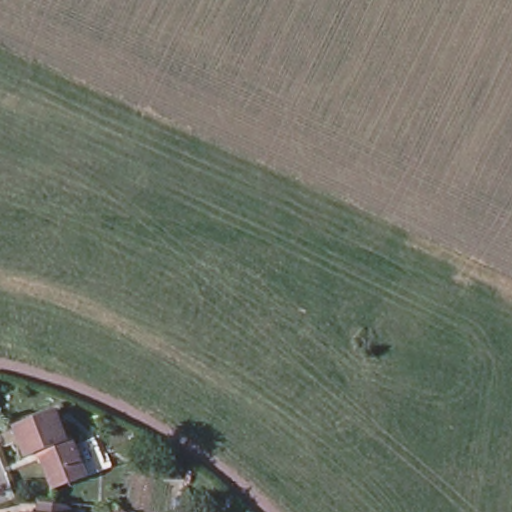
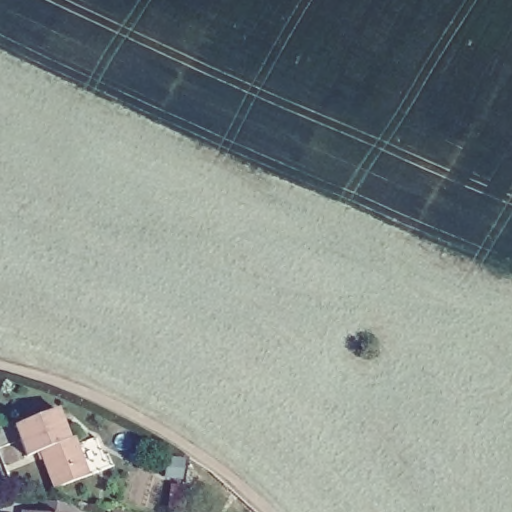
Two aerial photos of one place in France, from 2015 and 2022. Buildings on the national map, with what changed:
unchanged [(70,446),(76,444),(90,482),(55,495),(42,458),(30,462),(19,431),(60,417),(70,446)]

